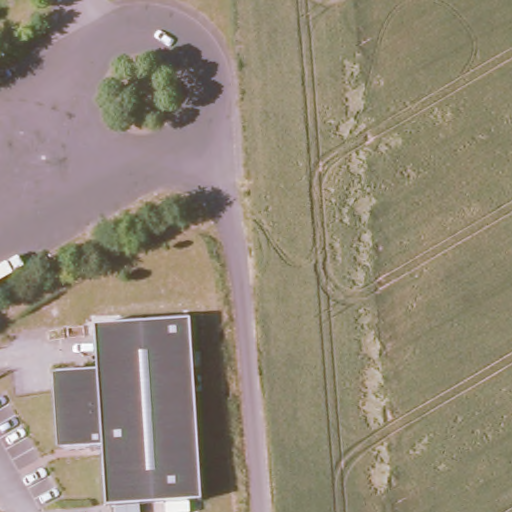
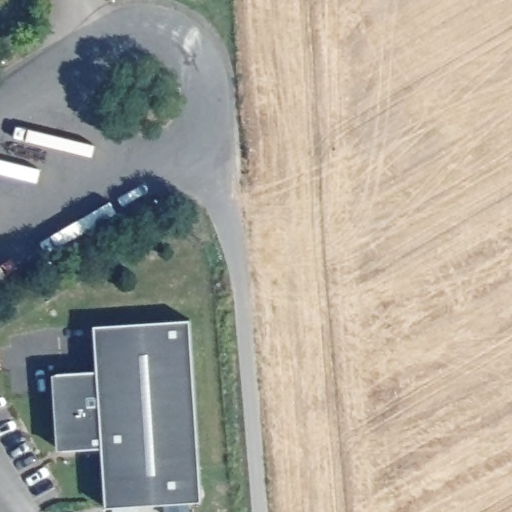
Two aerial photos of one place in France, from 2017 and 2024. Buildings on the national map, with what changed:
unchanged [(202,500),(107,507),(103,446),(57,449),(52,373),(97,371),(95,327),(190,320),(202,500)]

